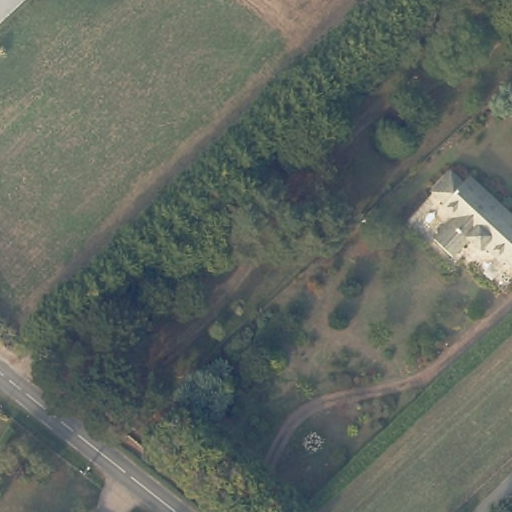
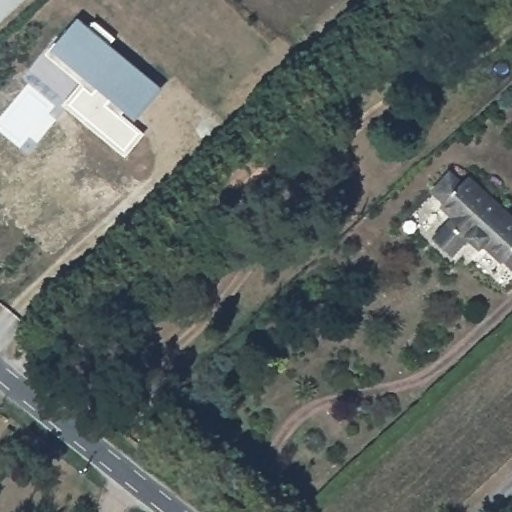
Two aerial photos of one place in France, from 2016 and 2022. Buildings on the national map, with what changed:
new [(141,129),(126,147),(71,101),(86,84),(50,54),(57,46),(80,19),(89,27),(96,19),(116,36),(110,44),(161,86),(138,113),(129,106),(122,114),(141,129)]
unchanged [(503,262),(485,243),(481,248),(469,236),(453,252),(437,236),(453,218),(441,206),(444,201),(431,191),(450,170),(463,180),(468,175),(512,216),(512,266),(505,260),(503,262)]

